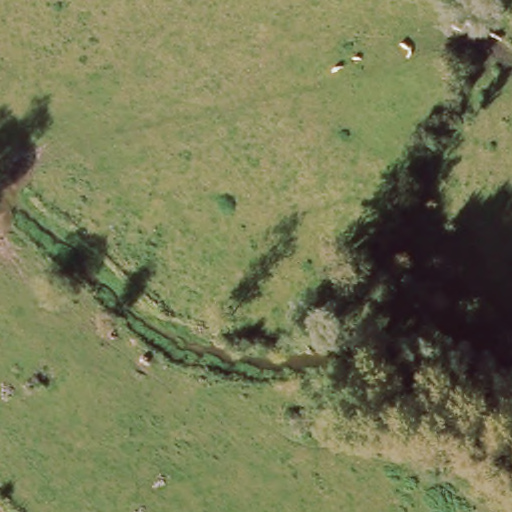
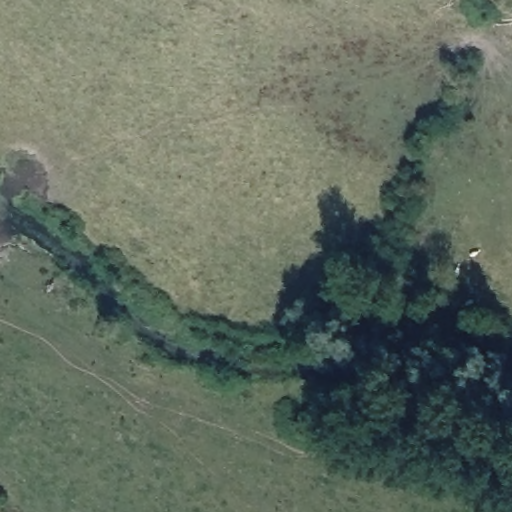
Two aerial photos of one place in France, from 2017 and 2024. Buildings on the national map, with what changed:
[]

